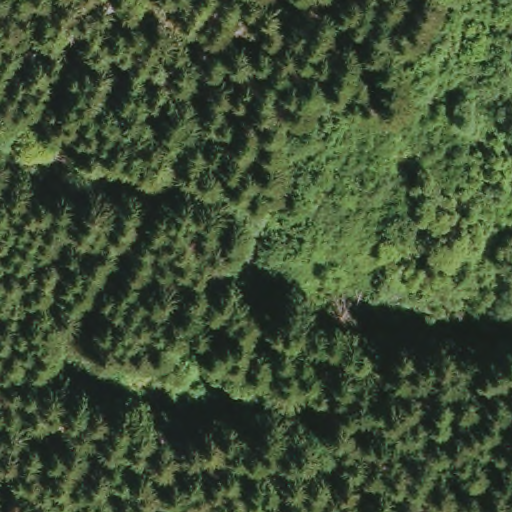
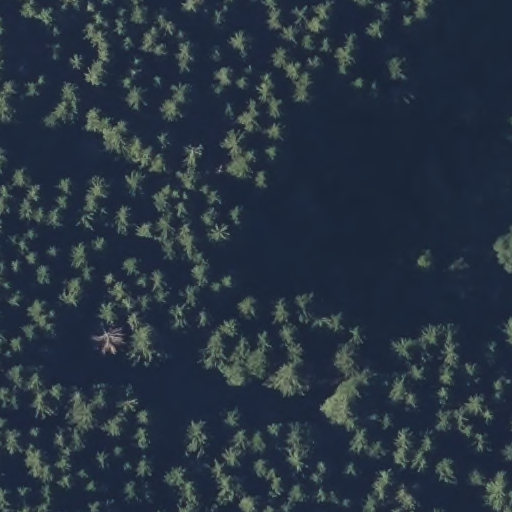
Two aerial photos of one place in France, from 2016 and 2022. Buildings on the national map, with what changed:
[]

